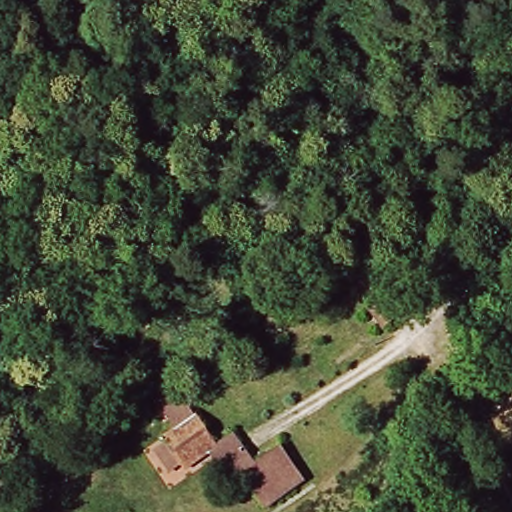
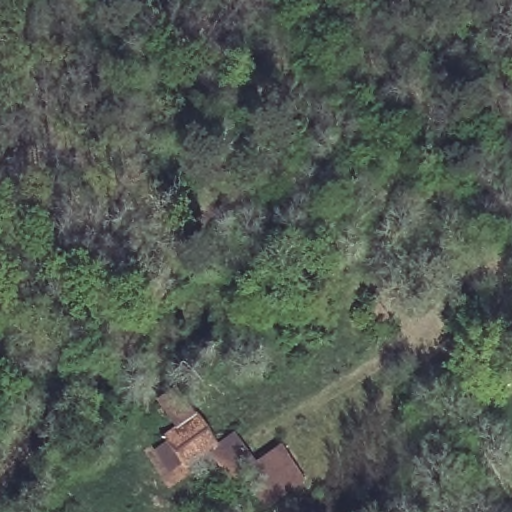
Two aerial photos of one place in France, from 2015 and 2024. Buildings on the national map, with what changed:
unchanged [(178,438),(176,436),(187,429),(167,400),(183,389),(202,418),(205,417),(225,446),(239,437),(259,467),(289,447),(310,480),(274,503),(253,472),(242,478),(222,447),(194,465),(194,463),(180,471),(165,447),(178,438)]

